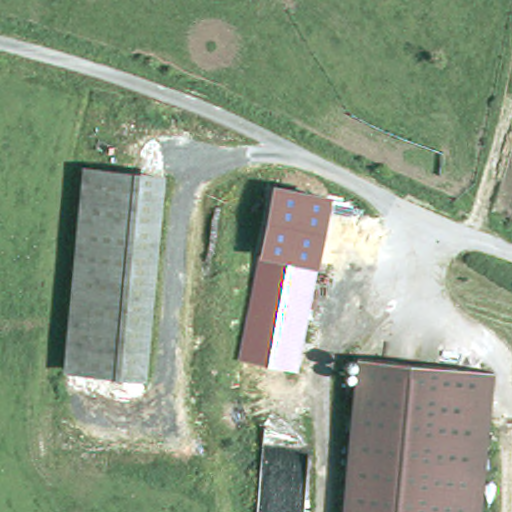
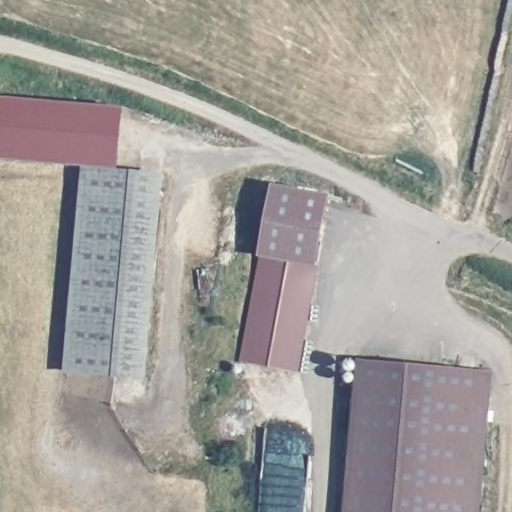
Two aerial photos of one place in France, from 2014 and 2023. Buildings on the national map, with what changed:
new [(120,168),(0,159),(0,97),(125,107),(120,168)]
unchanged [(83,171),(160,176),(145,374),(67,368),(83,171)]
unchanged [(330,196),(319,268),(299,371),(239,360),(260,255),(272,184),(330,196)]
unchanged [(356,359),(490,369),(479,512),(344,512),(356,359)]

